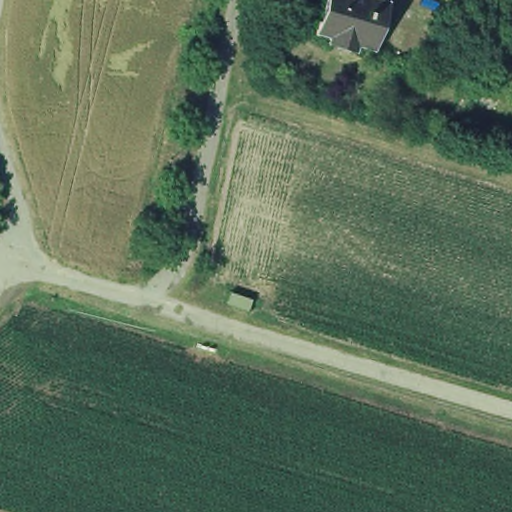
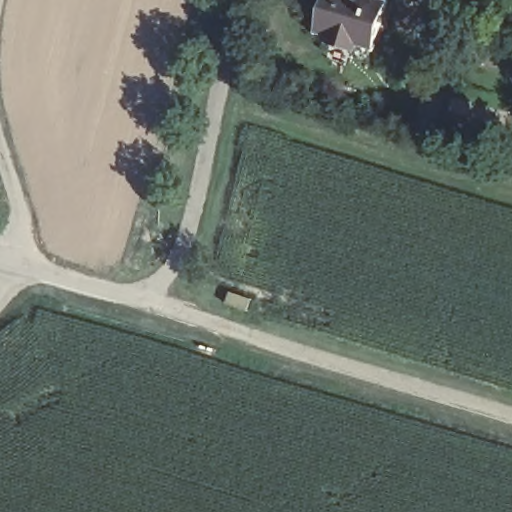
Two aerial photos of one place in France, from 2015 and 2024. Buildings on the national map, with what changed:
unchanged [(383,6),(372,53),(356,49),(356,55),(326,48),(326,42),(313,39),(321,0),(354,0),(383,6)]

